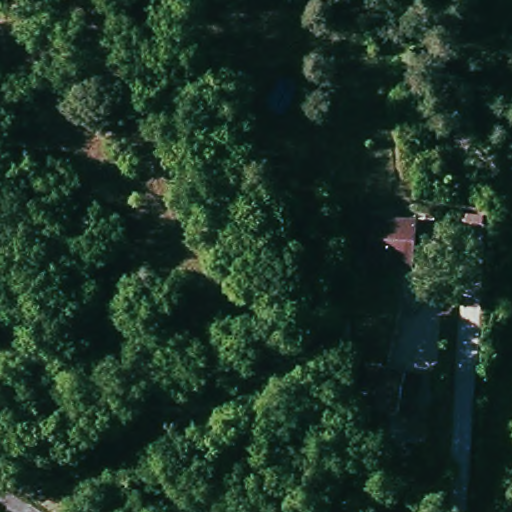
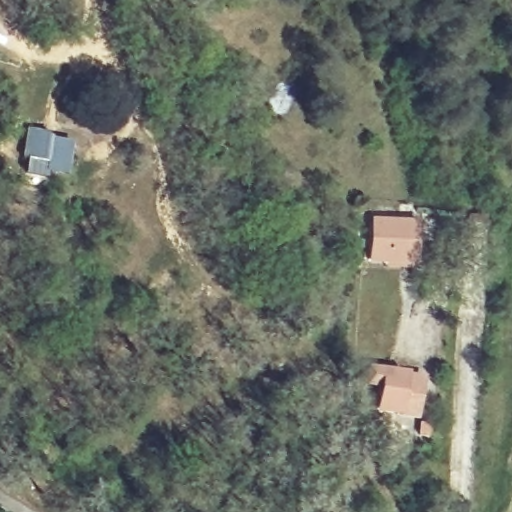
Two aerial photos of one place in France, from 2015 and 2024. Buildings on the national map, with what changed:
new [(66,176),(47,173),(46,177),(20,172),(27,126),(50,130),(48,138),(71,142),(66,176)]
unchanged [(395,258),(376,256),(379,220),(424,222),(422,259),(421,269),(395,268),(395,258)]
unchanged [(417,413),(397,413),(400,389),(386,388),(387,371),(400,372),(420,374),(417,413)]

